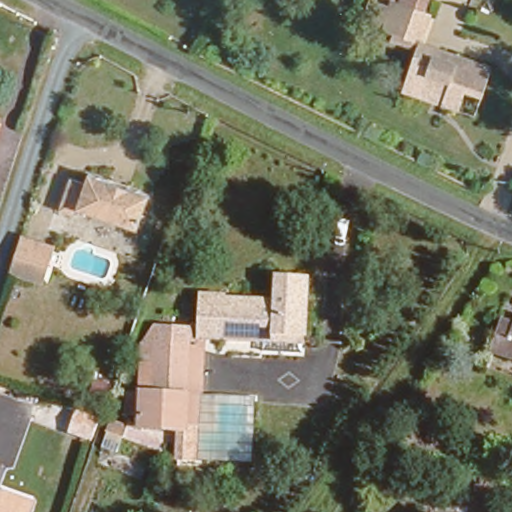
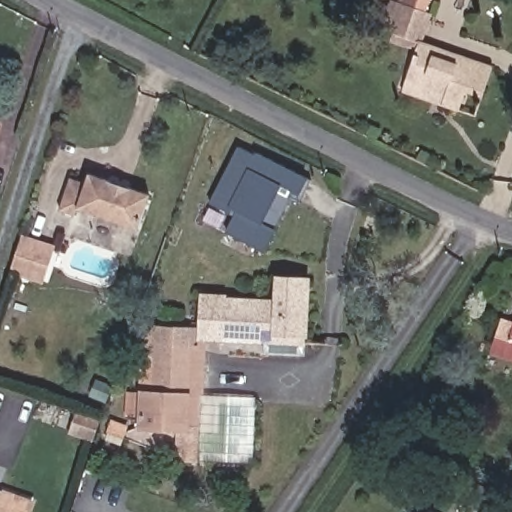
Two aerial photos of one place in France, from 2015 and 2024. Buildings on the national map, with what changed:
unchanged [(379,10),(382,0),(439,0),(425,29),(379,10)]
unchanged [(480,94),(465,85),(453,108),(396,90),(417,34),(490,62),(480,94)]
new [(239,151),(255,160),(257,156),(308,182),(299,200),(280,191),(264,225),(279,232),(267,256),(228,237),(239,216),(233,214),(230,219),(210,209),(239,151)]
unchanged [(117,184),(131,188),(134,181),(151,186),(141,219),(93,204),(86,202),(83,209),(65,204),(76,170),(93,175),(95,169),(103,171),(119,176),(117,184)]
unchanged [(20,233),(54,243),(41,284),(8,273),(20,233)]
unchanged [(218,337),(219,312),(224,295),(274,296),(274,275),(304,274),(304,296),(303,328),(303,338),(290,337),(262,337),(218,337)]
unchanged [(504,311),(512,315),(512,355),(491,347),(504,311)]
unchanged [(171,339),(172,322),(204,324),(201,387),(192,389),(190,424),(134,423),(138,338),(171,339)]
new [(76,412),(100,420),(93,441),(69,434),(76,412)]
unchanged [(24,512),(0,512),(0,494),(28,502),(24,512)]
unchanged [(422,503),(433,512),(414,512),(422,503)]

